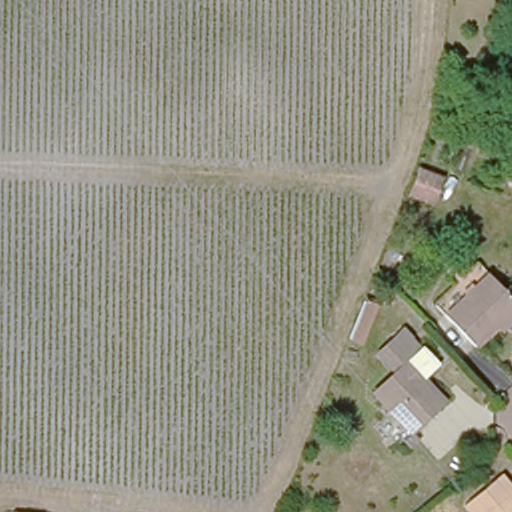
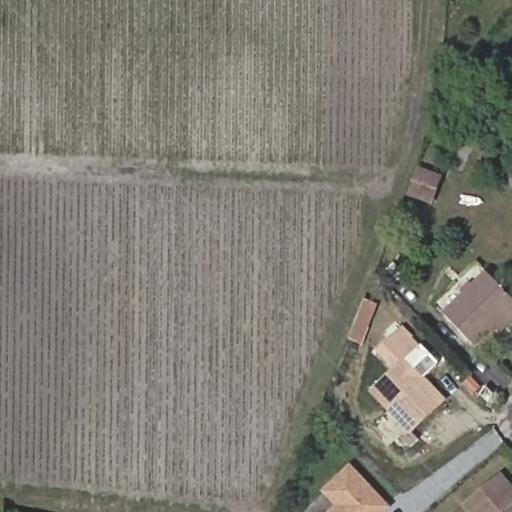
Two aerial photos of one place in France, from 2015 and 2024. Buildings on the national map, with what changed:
unchanged [(503,332),(497,325),(475,345),(446,315),(487,275),(512,299),(512,323),(503,332)]
unchanged [(404,322),(426,341),(407,359),(395,371),(373,352),(404,322)]
unchanged [(392,407),(375,390),(395,371),(407,359),(417,370),(425,378),(445,398),(420,422),(413,428),(392,407)]
new [(328,512),(334,507),(321,492),(350,464),(392,508),(388,512),(328,512)]
unchanged [(512,491),(512,502),(509,505),(512,508),(512,512),(465,512),(458,505),(493,472),(512,491)]

